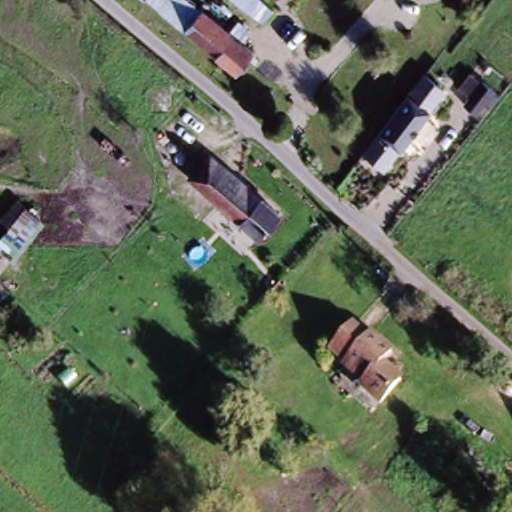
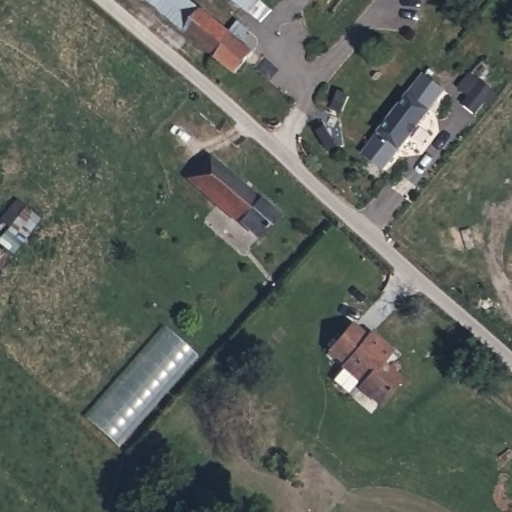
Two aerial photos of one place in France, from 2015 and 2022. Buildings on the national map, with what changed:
unchanged [(252,50),(233,74),(137,0),(189,0),(252,50)]
unchanged [(422,72),(442,89),(382,168),(360,154),(422,72)]
unchanged [(214,161),(267,207),(282,205),(286,210),(260,241),(194,184),(214,161)]
unchanged [(362,321),(397,353),(387,364),(405,383),(382,409),(359,386),(359,376),(336,350),(362,321)]
new [(197,354),(118,447),(85,417),(166,326),(197,354)]

